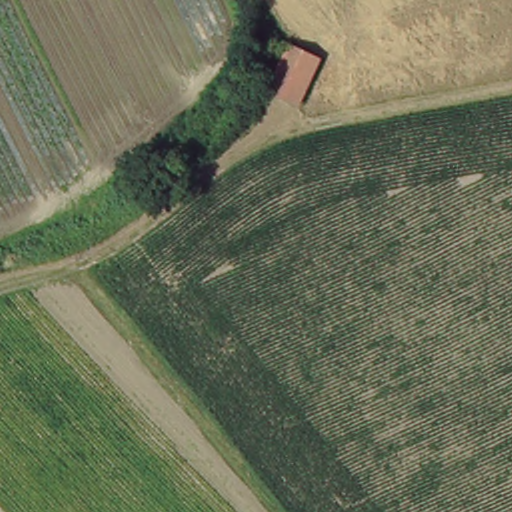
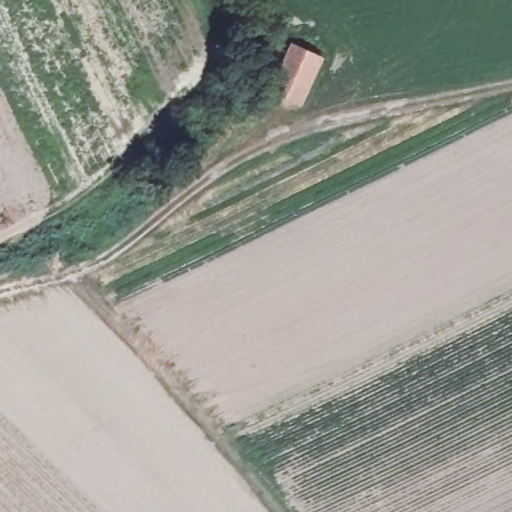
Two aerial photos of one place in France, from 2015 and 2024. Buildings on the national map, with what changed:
unchanged [(303,103),(272,89),(294,44),(325,58),(303,103)]

